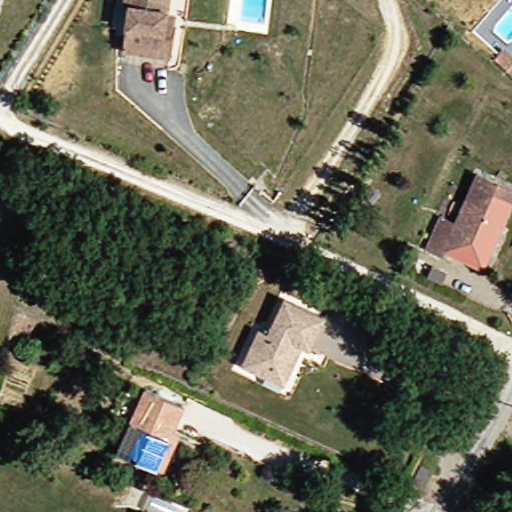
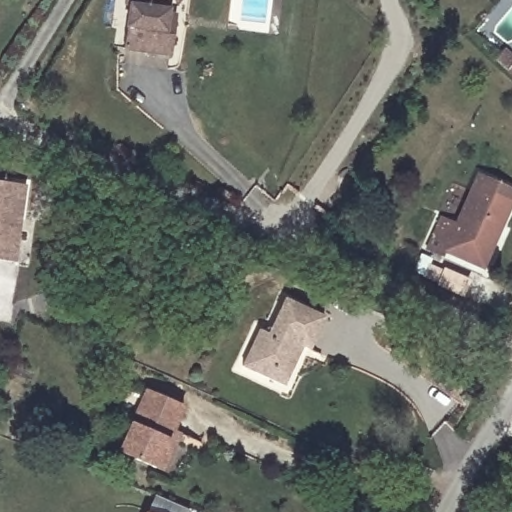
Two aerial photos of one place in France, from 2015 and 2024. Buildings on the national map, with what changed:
unchanged [(179,21),(175,53),(129,48),(134,3),(129,3),(130,0),(173,0),(170,20),(179,21)]
new [(506,69),(493,57),(501,47),(512,57),(512,75),(506,69)]
unchanged [(444,253),(442,259),(424,251),(438,218),(456,224),(476,172),(512,187),(512,209),(506,224),(488,270),(444,253)]
new [(19,219),(34,221),(28,263),(0,260),(0,180),(24,183),(19,219)]
unchanged [(274,377),(248,365),(264,327),(274,330),(289,293),(333,311),(318,350),(305,345),(302,352),(294,369),(288,383),(274,377)]
unchanged [(123,444),(146,387),(184,404),(175,428),(174,430),(183,434),(168,473),(158,469),(139,462),(119,454),(123,444)]

